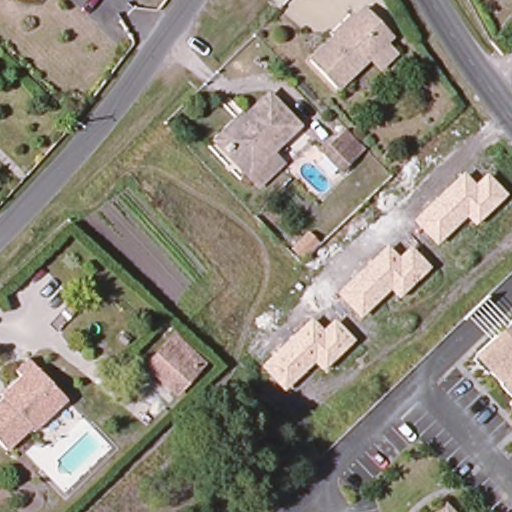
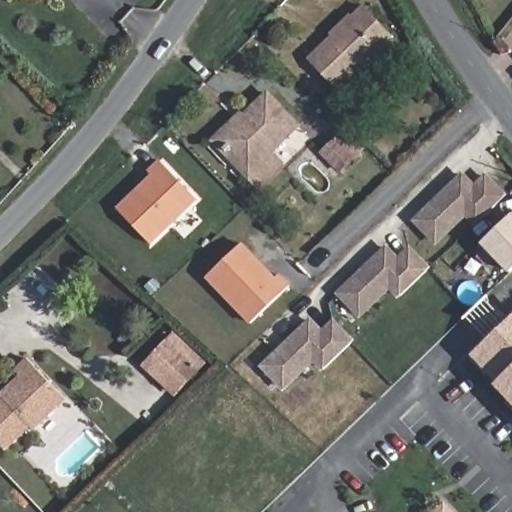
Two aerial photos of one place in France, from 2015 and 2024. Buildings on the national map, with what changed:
unchanged [(388,33),(336,85),(312,61),(365,8),(388,33)]
unchanged [(295,129),(268,155),(281,169),(256,192),(240,174),(244,170),(218,142),(264,98),(295,129)]
unchanged [(347,152),(336,163),(319,145),(330,134),(347,152)]
new [(155,175),(151,172),(164,160),(200,197),(154,243),(120,209),(155,175)]
unchanged [(435,244),(412,220),(463,172),(474,184),(486,173),(506,194),(475,225),(465,216),(435,244)]
new [(512,214),(512,269),(485,240),(512,214)]
unchanged [(292,233),(307,251),(296,263),(280,244),(292,233)]
new [(241,244),(275,278),(279,274),(290,286),(253,323),(207,276),(241,244)]
unchanged [(360,317),(336,292),(386,244),(398,256),(411,245),(430,267),(398,297),(390,289),(360,317)]
unchanged [(321,371),(313,362),(283,391),(260,365),(311,317),(322,329),(334,318),(354,339),(321,371)]
unchanged [(499,389),(500,388),(488,376),(490,374),(475,358),(512,322),(512,402),(499,389)]
unchanged [(200,370),(179,392),(149,364),(171,341),(200,370)]
unchanged [(7,453),(0,446),(0,403),(1,401),(0,400),(0,393),(15,377),(10,371),(24,357),(64,400),(7,453)]
unchanged [(455,512),(435,512),(445,502),(455,512)]

